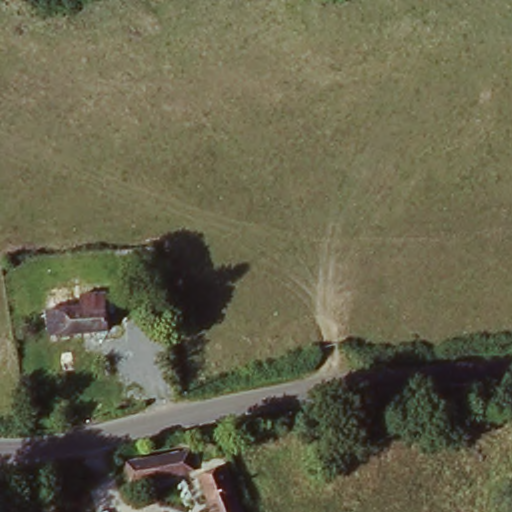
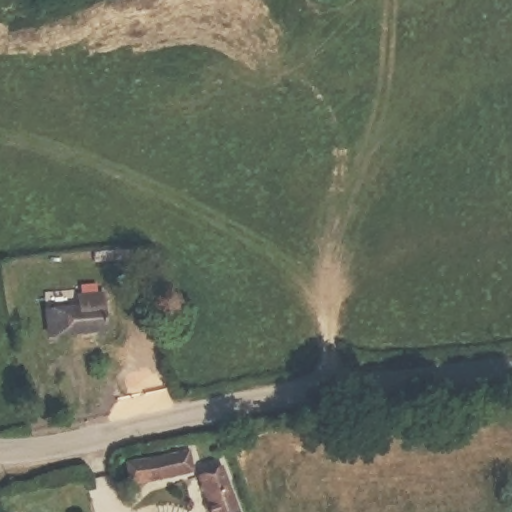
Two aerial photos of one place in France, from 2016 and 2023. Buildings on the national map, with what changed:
unchanged [(105,335),(50,340),(47,314),(63,313),(62,299),(75,298),(75,301),(102,299),(105,335)]
unchanged [(139,351),(139,374),(121,376),(119,352),(139,351)]
unchanged [(186,454),(189,473),(131,483),(129,463),(186,454)]
unchanged [(238,512),(217,512),(203,474),(222,468),(238,512)]

